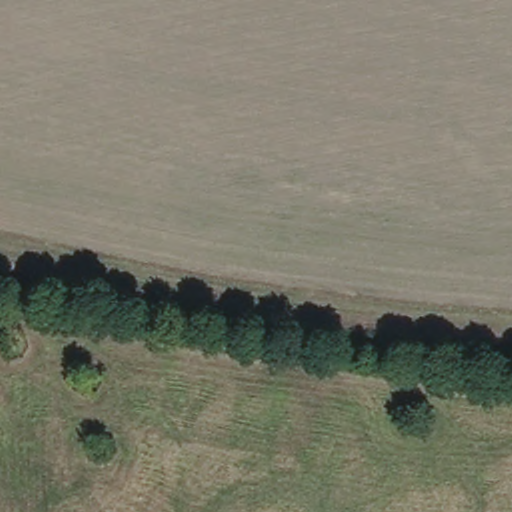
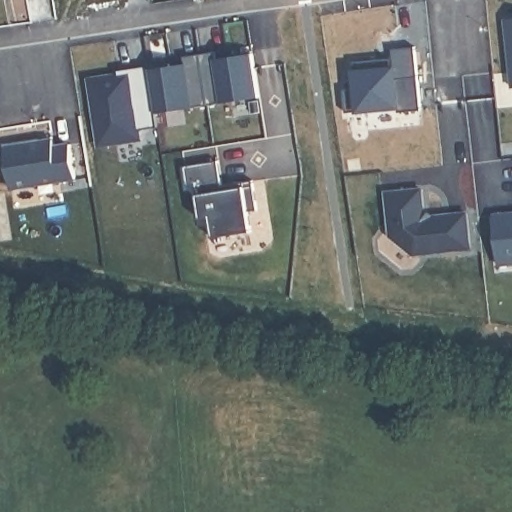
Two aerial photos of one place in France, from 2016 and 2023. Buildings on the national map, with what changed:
new [(512,87),(508,87),(503,17),(512,16),(512,87)]
new [(343,89),(355,89),(353,60),(393,57),(392,48),(415,46),(421,110),(397,113),(397,108),(346,112),(343,89)]
new [(186,60),(185,54),(211,51),(213,56),(252,51),(257,95),(153,111),(148,65),(186,60)]
new [(148,65),(153,111),(155,124),(139,126),(142,140),(101,144),(90,74),(148,65)]
new [(4,145),(57,137),(58,145),(71,143),(75,177),(11,185),(4,145)]
new [(218,161),(224,187),(254,183),(259,212),(250,214),(253,234),(214,241),(210,219),(201,221),(196,185),(188,187),(185,167),(218,161)]
new [(423,185),(425,214),(465,210),(470,250),(413,256),(389,236),(386,192),(423,185)]
new [(512,263),(498,264),(492,215),(512,214),(512,263)]

